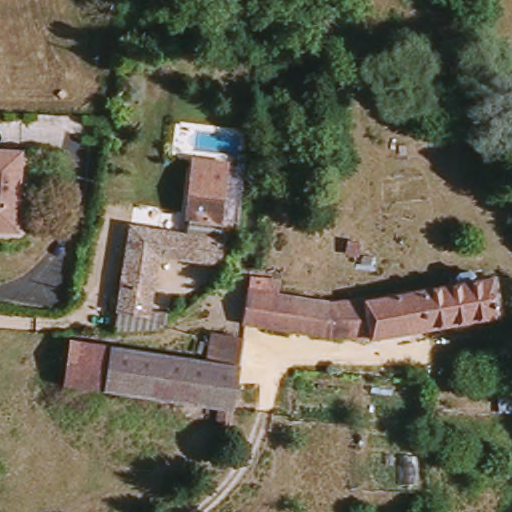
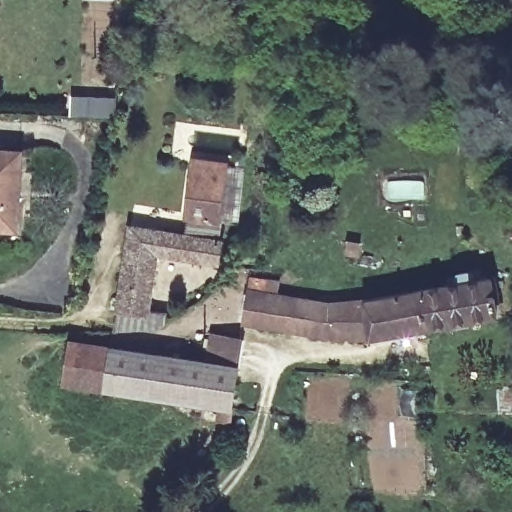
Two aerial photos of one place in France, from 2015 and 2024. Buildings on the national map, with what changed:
new [(71,98),(117,100),(116,117),(70,115),(71,98)]
unchanged [(17,230),(0,230),(0,150),(21,151),(17,230)]
unchanged [(131,226),(187,235),(189,217),(187,217),(194,160),(227,164),(244,166),(237,222),(219,220),(217,240),(222,240),(218,265),(157,255),(149,310),(167,313),(165,325),(159,330),(115,332),(131,226)]
unchanged [(347,241),(360,244),(358,257),(345,255),(347,241)]
unchanged [(247,294),(251,282),(266,285),(263,297),(330,308),(363,306),(452,290),(451,283),(458,282),(460,279),(471,277),(474,280),(475,286),(492,283),(499,320),(370,343),(331,342),(242,328),(247,294)]
unchanged [(211,363),(212,335),(241,339),(237,367),(232,408),(104,390),(111,347),(211,363)]
unchanged [(70,341),(111,347),(104,390),(62,383),(70,341)]

